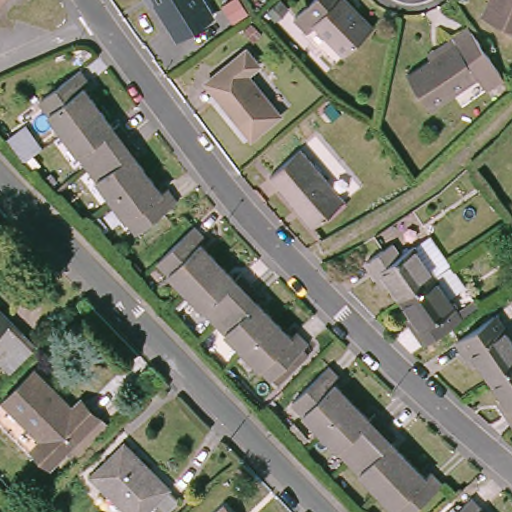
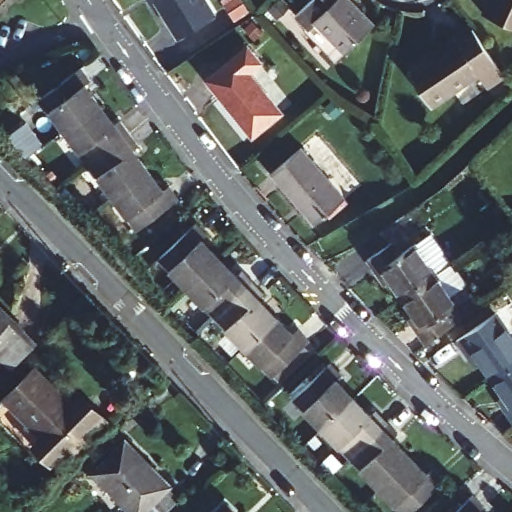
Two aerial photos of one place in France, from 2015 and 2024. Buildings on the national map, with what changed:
unchanged [(177,32),(157,0),(204,0),(210,11),(177,32)]
unchanged [(309,16),(301,23),(289,10),(299,0),(348,0),(368,20),(340,48),(309,16)]
unchanged [(480,0),(512,0),(512,22),(477,5),(480,0)]
unchanged [(473,71),(425,104),(402,69),(425,54),(420,47),(462,19),(467,25),(475,36),(499,72),(481,85),(473,71)]
unchanged [(254,54),(243,63),(275,105),(247,128),(215,86),(202,70),(207,66),(242,39),(254,54)]
unchanged [(75,63),(85,76),(79,81),(109,121),(115,116),(134,141),(128,146),(157,186),(163,182),(172,195),(131,225),(34,93),(75,63)]
unchanged [(7,139),(16,132),(33,150),(25,158),(7,139)]
unchanged [(339,195),(309,221),(265,170),(295,144),(339,195)]
unchanged [(276,373),(271,367),(157,249),(195,214),(206,226),(200,231),(235,268),(240,262),(262,285),(257,290),(290,325),(297,320),(307,332),(299,341),(304,346),(276,373)]
unchanged [(370,263),(361,250),(387,232),(394,243),(405,235),(407,236),(425,224),(445,254),(397,287),(385,271),(379,275),(370,263)]
unchanged [(408,305),(397,287),(445,254),(460,276),(442,288),(451,300),(469,288),(474,296),(457,309),(419,335),(410,321),(402,310),(408,305)]
unchanged [(4,373),(0,370),(0,301),(39,341),(4,373)]
unchanged [(464,354),(455,342),(492,315),(512,343),(512,365),(491,379),(479,362),(472,366),(464,354)]
unchanged [(324,359),(335,370),(329,376),(364,412),(370,407),(391,429),(385,435),(420,471),(426,465),(438,478),(401,512),(400,512),(287,395),(324,359)]
unchanged [(77,447),(68,438),(50,456),(32,438),(42,428),(5,390),(35,361),(77,403),(80,406),(90,396),(100,407),(109,415),(77,447)]
unchanged [(491,379),(512,365),(512,424),(505,413),(496,401),(503,396),(491,379)]
unchanged [(0,415),(0,394),(5,390),(42,428),(32,438),(27,443),(0,415)]
unchanged [(165,512),(129,512),(92,475),(125,442),(170,487),(180,498),(165,512)]
unchanged [(465,486),(477,497),(470,503),(480,512),(437,512),(465,486)]
unchanged [(224,505),(231,512),(216,512),(224,505)]

